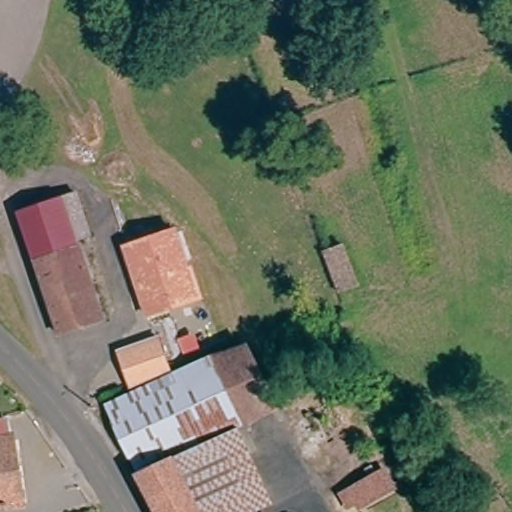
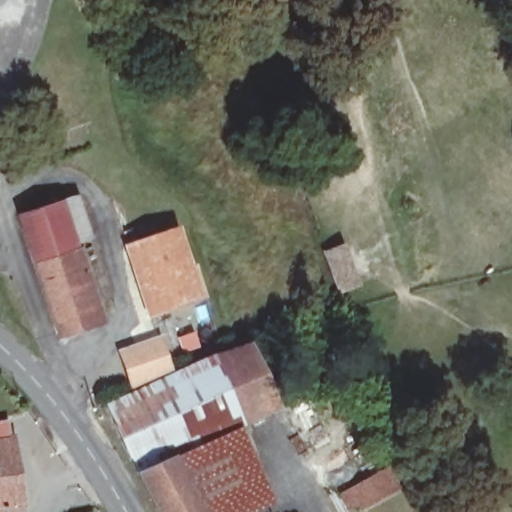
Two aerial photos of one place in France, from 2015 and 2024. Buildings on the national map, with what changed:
unchanged [(66,194),(109,313),(71,325),(65,327),(44,267),(23,207),(66,194)]
unchanged [(167,229),(189,301),(167,309),(144,316),(120,245),(135,240),(167,229)]
unchanged [(330,296),(317,253),(348,242),(364,285),(330,296)]
unchanged [(162,367),(159,368),(123,381),(112,351),(110,344),(126,338),(148,330),(162,367)]
unchanged [(106,408),(243,349),(274,410),(239,428),(141,477),(106,408)]
unchanged [(24,512),(0,512),(0,418),(14,417),(31,512),(24,512)]
unchanged [(275,499),(248,512),(159,512),(141,477),(239,428),(275,499)]
unchanged [(366,512),(361,504),(351,510),(342,492),(387,465),(403,488),(366,512)]

